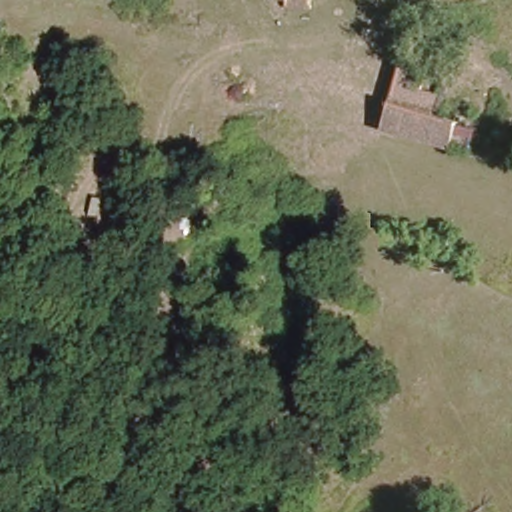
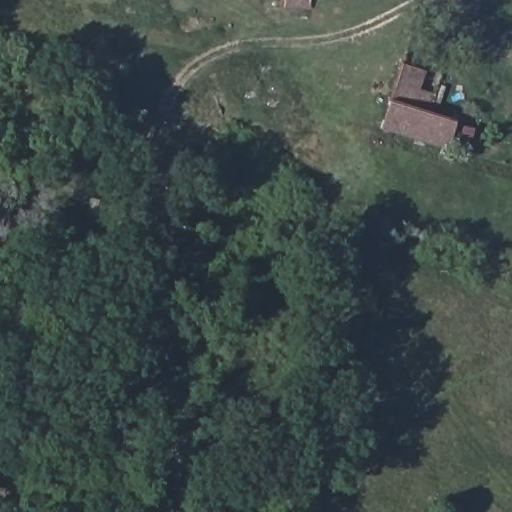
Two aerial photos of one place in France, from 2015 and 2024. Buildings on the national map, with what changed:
unchanged [(285,9),(285,2),(272,0),(273,0),(309,0),(308,11),(285,9)]
unchanged [(406,61),(443,74),(433,106),(449,112),(440,143),(383,128),(381,127),(406,61)]

